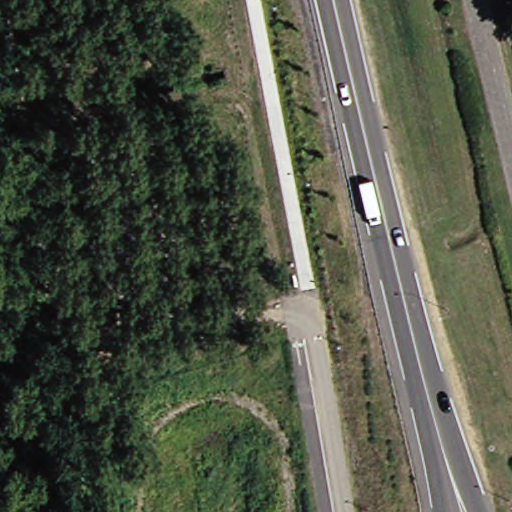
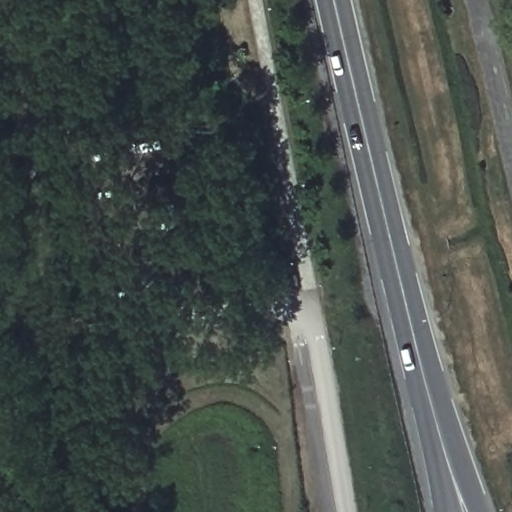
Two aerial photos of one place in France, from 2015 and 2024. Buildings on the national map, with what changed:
[]

